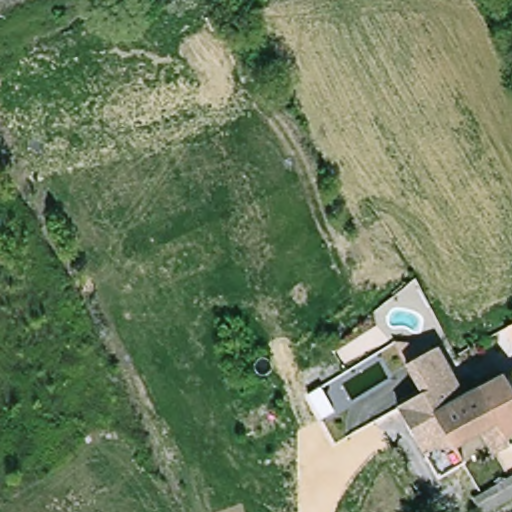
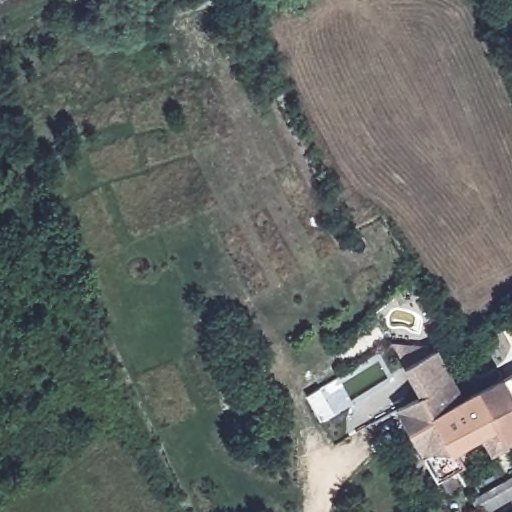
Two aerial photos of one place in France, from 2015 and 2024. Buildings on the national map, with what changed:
unchanged [(512,335),(512,343),(509,337),(512,335)]
unchanged [(499,430),(501,433),(485,442),(473,421),(448,436),(456,451),(430,466),(391,395),(415,382),(400,353),(430,336),(450,372),(464,365),(469,372),(493,358),(497,366),(512,358),(512,423),(503,427),(499,430)]
unchanged [(512,500),(490,512),(487,512),(476,492),(512,472),(512,500)]

